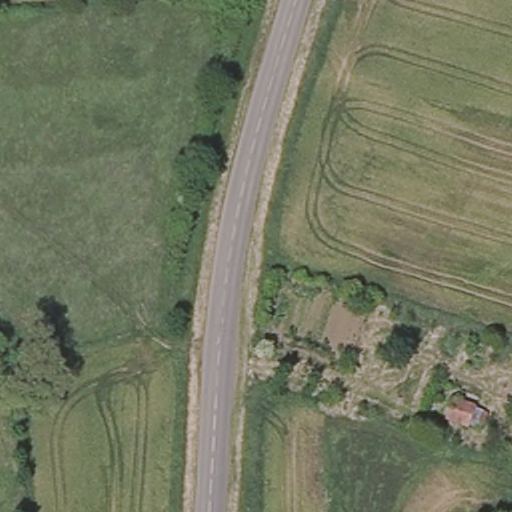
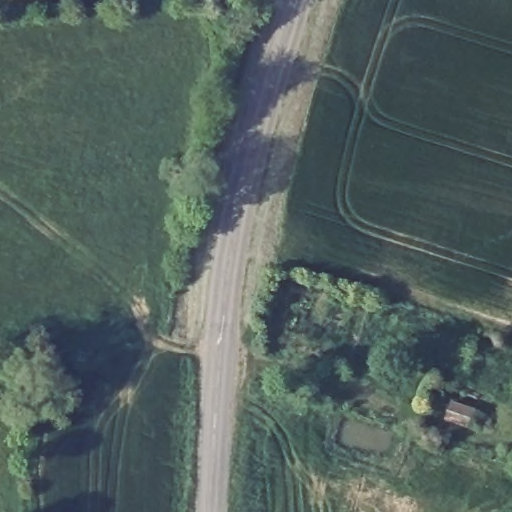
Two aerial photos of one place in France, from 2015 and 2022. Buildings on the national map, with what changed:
unchanged [(487,399),(481,421),(444,412),(447,392),(487,399)]

